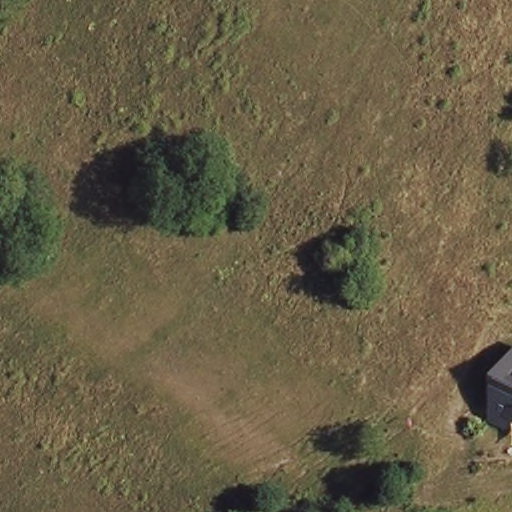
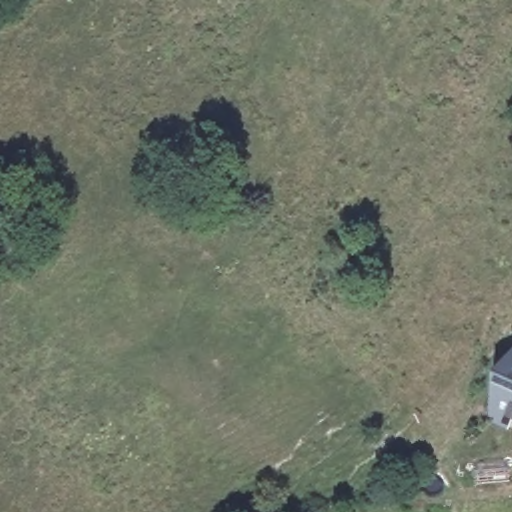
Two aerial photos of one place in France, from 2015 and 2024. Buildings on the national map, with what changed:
unchanged [(494,422),(494,407),(503,389),(496,375),(512,364),(512,418),(507,427),(494,422)]

